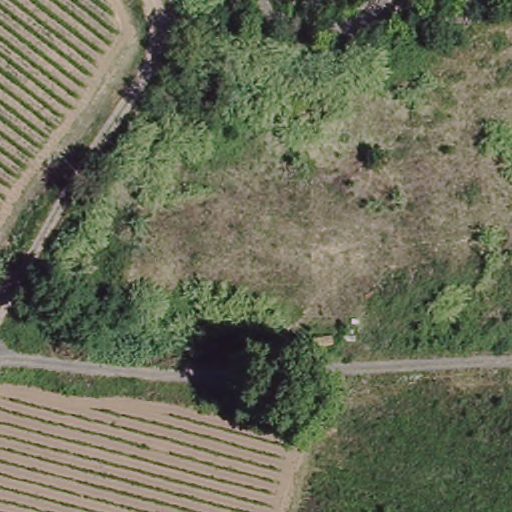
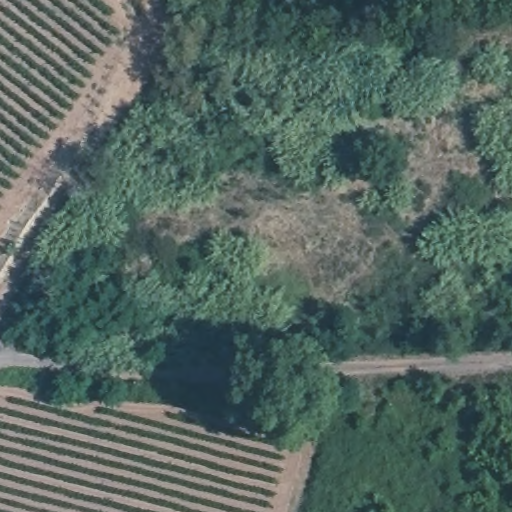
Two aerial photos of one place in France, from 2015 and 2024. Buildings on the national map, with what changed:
[]

